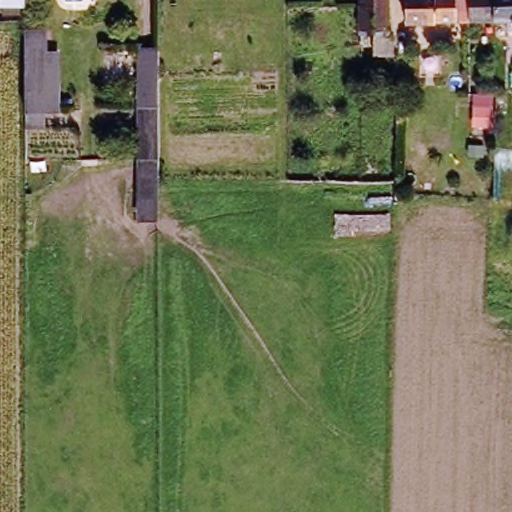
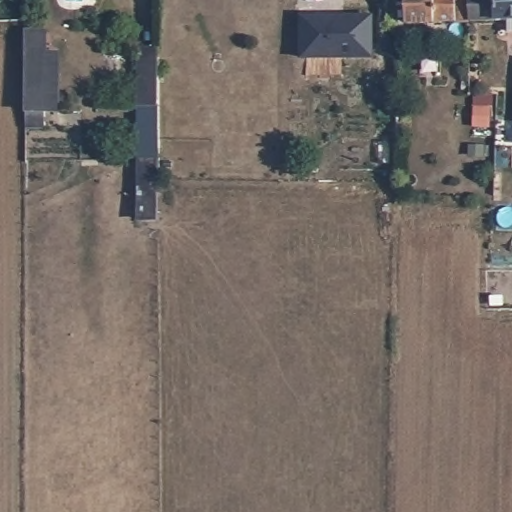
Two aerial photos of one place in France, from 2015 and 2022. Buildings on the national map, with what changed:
unchanged [(30,0),(30,6),(7,6),(6,0),(30,0)]
demolished [(385,0),(383,31),(384,31),(385,31),(389,51),(370,51),(370,30),(355,30),(355,2),(355,0),(385,0)]
unchanged [(469,0),(469,23),(406,25),(406,0),(469,0)]
unchanged [(509,21),(469,23),(469,0),(512,0),(512,32),(509,32),(509,21)]
new [(302,15),(375,15),(377,57),(304,59),(302,15)]
unchanged [(57,53),(59,112),(45,112),(46,129),(25,129),(25,50),(25,32),(45,32),(45,50),(45,53),(57,53)]
unchanged [(135,49),(157,47),(161,94),(137,92),(135,49)]
unchanged [(163,185),(164,204),(161,204),(140,205),(137,92),(161,94),(163,185)]

